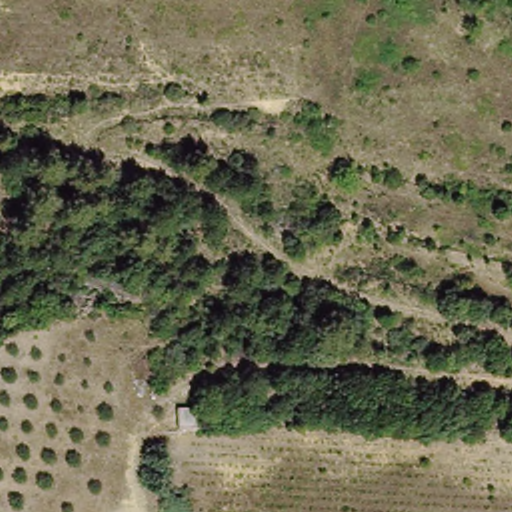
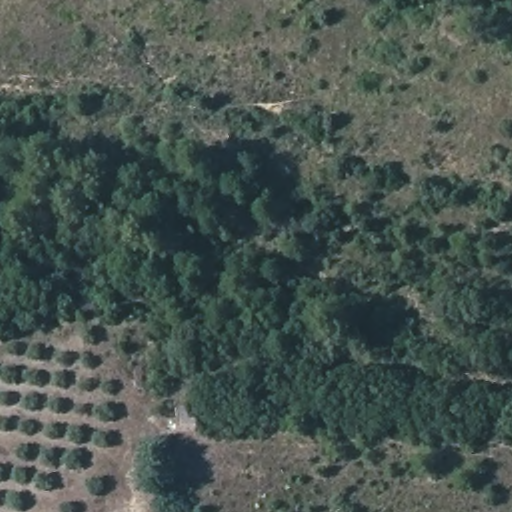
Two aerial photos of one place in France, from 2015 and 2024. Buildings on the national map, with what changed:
unchanged [(175,412),(196,411),(197,432),(175,432),(175,412)]

